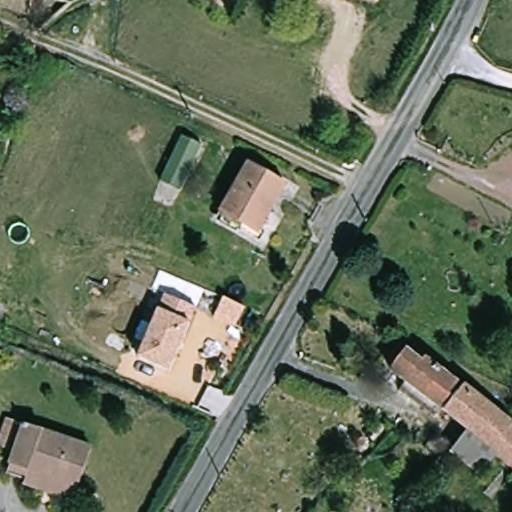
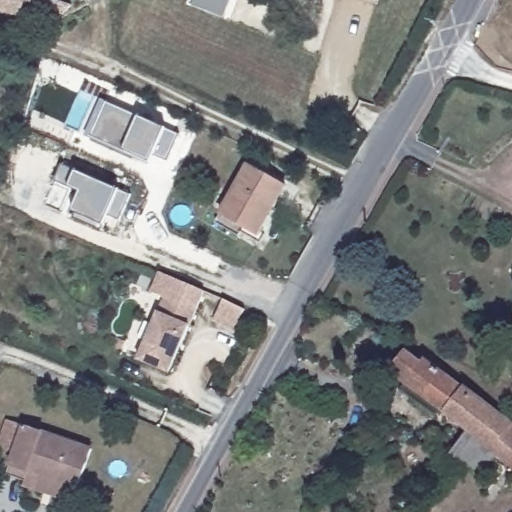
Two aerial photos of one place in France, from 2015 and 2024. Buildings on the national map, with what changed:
unchanged [(26,16),(0,8),(0,0),(30,0),(26,16)]
unchanged [(378,4),(363,0),(380,0),(378,4)]
new [(166,159),(146,150),(142,159),(90,135),(105,101),(177,134),(166,159)]
unchanged [(202,146),(182,190),(162,181),(182,139),(202,146)]
demolished [(221,158),(202,150),(207,140),(226,148),(221,158)]
unchanged [(219,217),(223,209),(252,161),(290,183),(261,232),(247,223),(242,232),(219,217)]
new [(58,164),(129,194),(118,220),(105,215),(99,230),(70,218),(80,193),(51,181),(58,164)]
unchanged [(135,360),(161,295),(194,308),(167,373),(135,360)]
unchanged [(220,300),(240,309),(231,330),(210,321),(220,300)]
unchanged [(437,415),(431,423),(396,397),(403,388),(387,377),(403,355),(420,367),(422,364),(460,392),(455,398),(440,417),(437,415)]
unchanged [(495,459),(482,476),(453,454),(466,437),(440,417),(455,398),(460,392),(510,431),(512,429),(512,473),(504,466),(495,459)]
unchanged [(24,488),(26,481),(5,474),(13,451),(0,447),(0,437),(6,419),(92,449),(77,490),(72,505),(24,488)]
unchanged [(442,456),(451,465),(443,473),(435,464),(442,456)]

